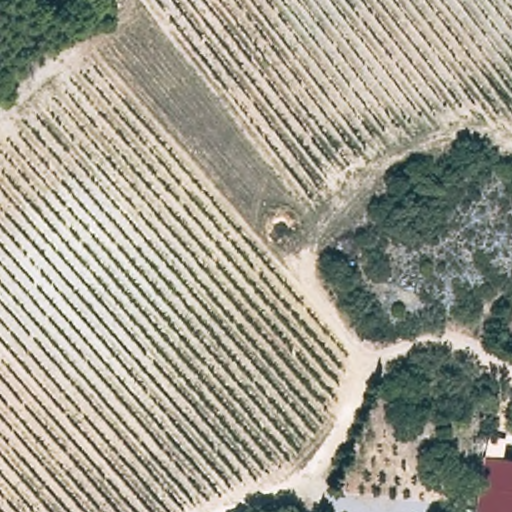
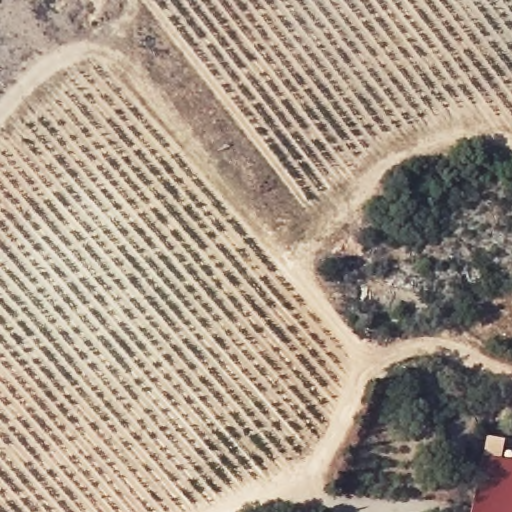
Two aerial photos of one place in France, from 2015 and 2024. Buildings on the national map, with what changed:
unchanged [(512,468),(512,512),(469,512),(479,462),(512,468)]

